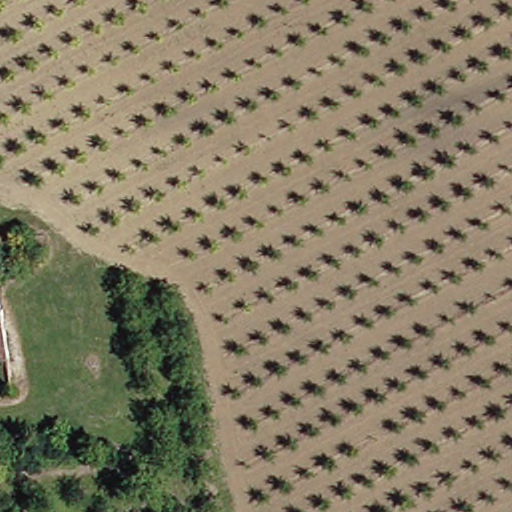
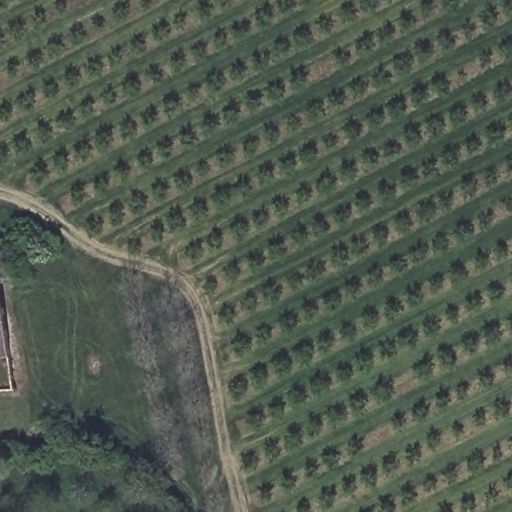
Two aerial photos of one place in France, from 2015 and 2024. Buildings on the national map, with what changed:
unchanged [(7,283),(11,309),(15,309),(20,354),(0,357),(0,284),(7,283)]

